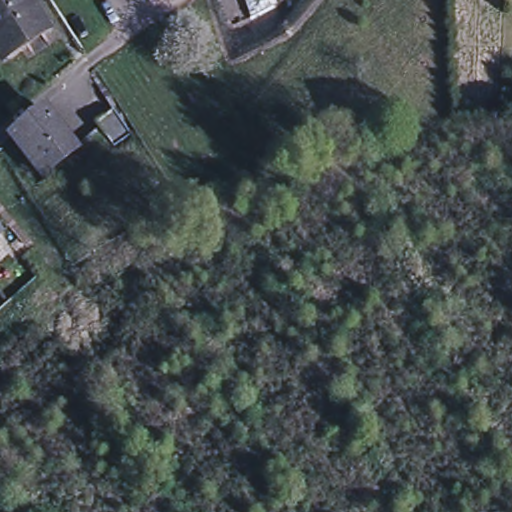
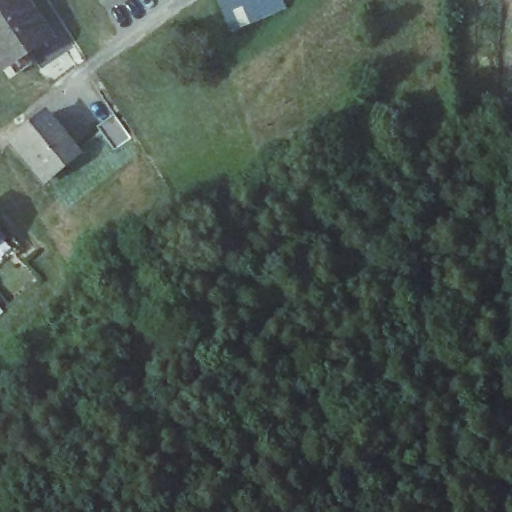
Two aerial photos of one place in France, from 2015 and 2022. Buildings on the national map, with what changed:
unchanged [(5,0),(20,0),(42,35),(2,60),(0,58),(0,3),(5,0)]
unchanged [(72,153),(47,171),(38,179),(9,142),(7,139),(20,129),(40,113),(42,116),(72,153)]
unchanged [(108,115),(125,139),(108,151),(92,127),(108,115)]
unchanged [(5,235),(0,239),(0,229),(5,235)]

